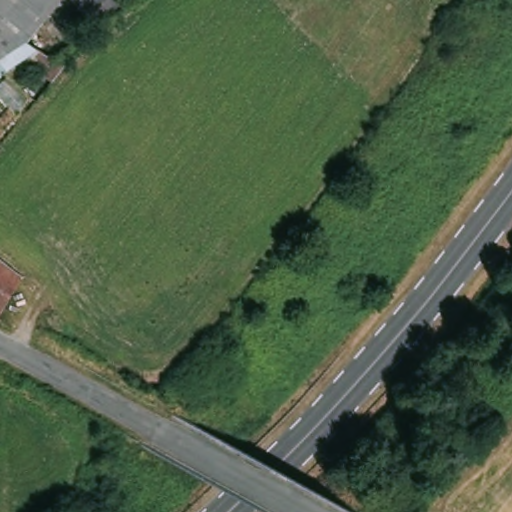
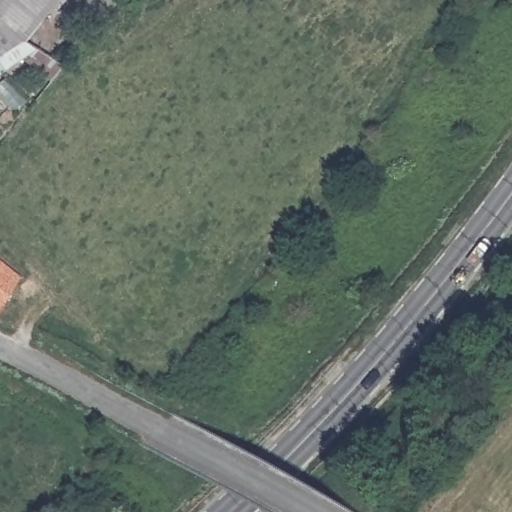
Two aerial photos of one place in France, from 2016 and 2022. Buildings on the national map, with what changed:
unchanged [(65,0),(30,43),(0,18),(0,0),(65,0)]
unchanged [(30,43),(0,64),(0,18),(30,43)]
unchanged [(24,276),(0,318),(0,257),(24,276)]

